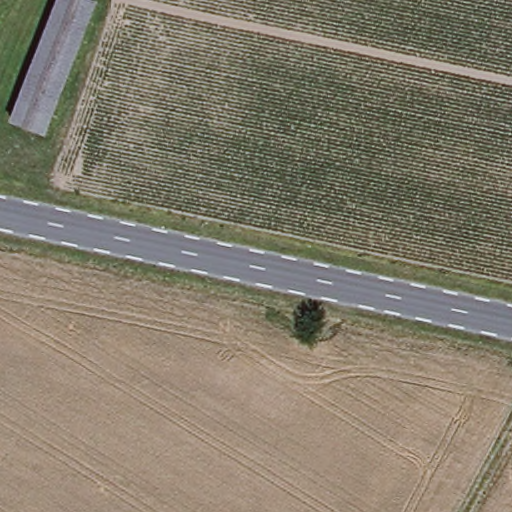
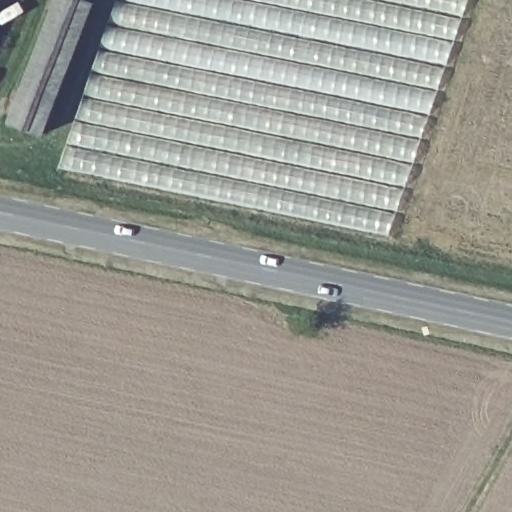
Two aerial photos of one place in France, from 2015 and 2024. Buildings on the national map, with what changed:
unchanged [(92,3),(45,134),(11,121),(56,0),(83,0),(92,3)]
new [(115,0),(467,0),(388,236),(59,167),(115,0)]

